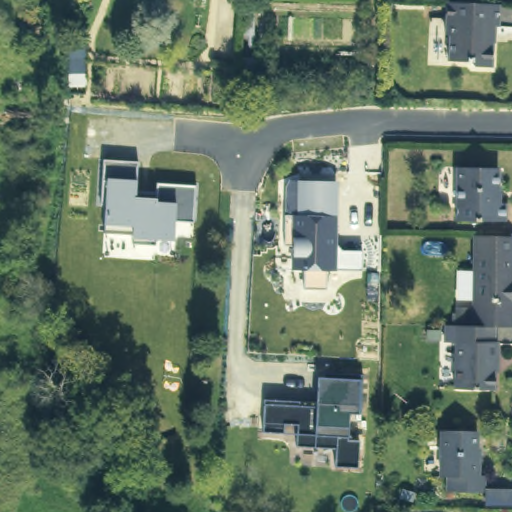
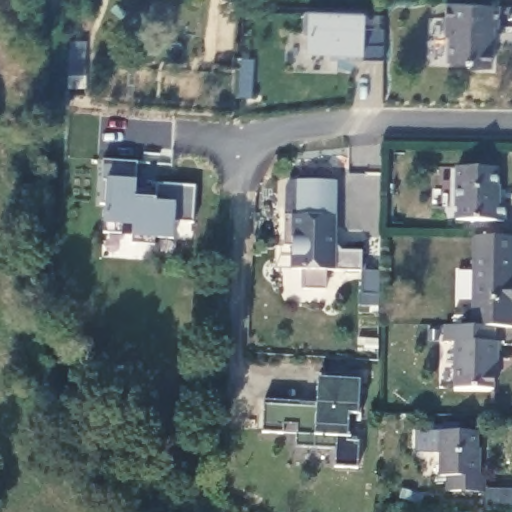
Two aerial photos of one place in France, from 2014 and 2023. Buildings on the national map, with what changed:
unchanged [(488,42),(491,45),(491,69),(473,69),(468,65),(448,64),(448,41),(444,37),(444,6),(497,7),(497,29),(488,28),(488,42)]
new [(330,52),(305,51),(307,10),(366,12),(365,27),(383,29),(383,59),(330,58),(330,52)]
unchanged [(192,223),(174,221),(172,240),(155,239),(154,246),(131,243),(131,236),(103,233),(106,180),(102,180),(103,160),(139,163),(136,192),(155,193),(157,184),(196,186),(192,223)]
unchanged [(502,222),(454,221),(455,168),(495,169),(494,204),(503,204),(502,222)]
unchanged [(337,249),(361,250),(361,271),(327,272),(327,290),(302,289),(302,271),(290,270),(291,235),(283,235),(284,187),(289,181),(338,182),(337,249)]
unchanged [(494,324),(471,324),(471,236),(512,237),(512,301),(512,325),(494,324)]
unchanged [(494,340),(497,340),(497,359),(494,359),(493,388),(453,387),(453,340),(443,340),(443,323),(471,324),(494,324),(494,340)]
unchanged [(361,414),(349,414),(347,441),(359,441),(358,468),(333,467),(334,449),(296,446),(296,435),(263,433),(264,400),(316,402),(317,376),(324,376),(324,373),(363,374),(361,414)]
unchanged [(475,431),(475,457),(477,457),(477,475),(483,475),(483,491),(447,491),(447,476),(439,476),(440,430),(475,431)]

